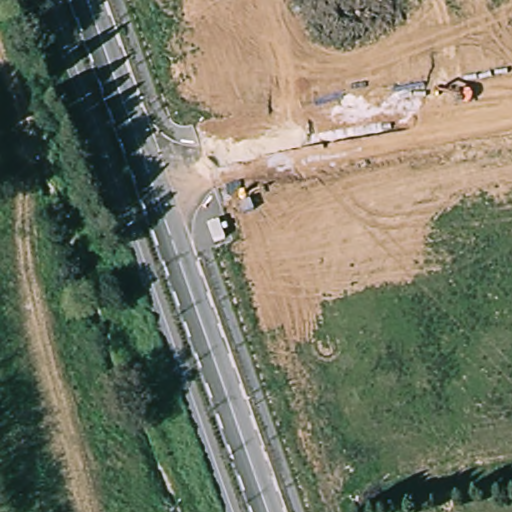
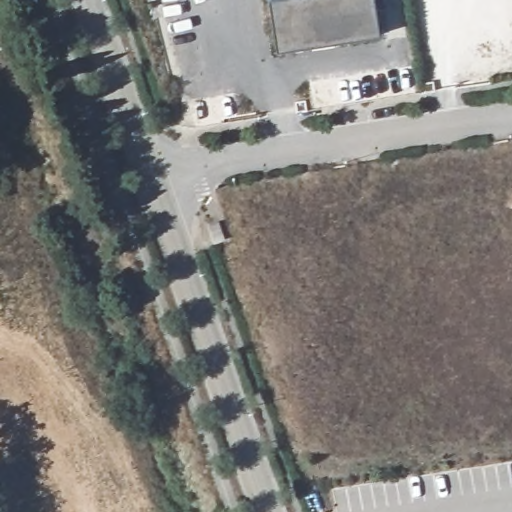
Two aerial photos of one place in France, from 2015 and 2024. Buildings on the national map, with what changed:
new [(277,49),(269,0),(375,0),(380,32),(277,49)]

